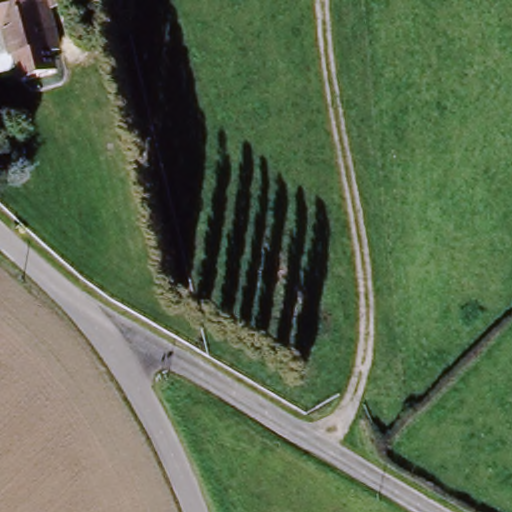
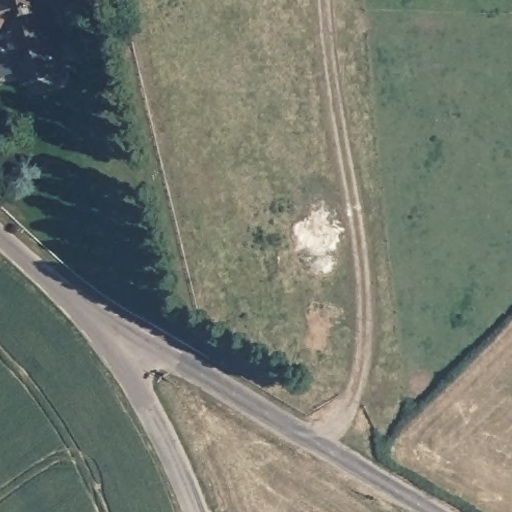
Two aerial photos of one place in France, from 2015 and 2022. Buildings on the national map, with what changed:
unchanged [(23,1),(23,0),(70,0),(47,6),(54,29),(41,32),(47,49),(5,61),(7,71),(4,77),(0,78),(0,8),(23,1)]

